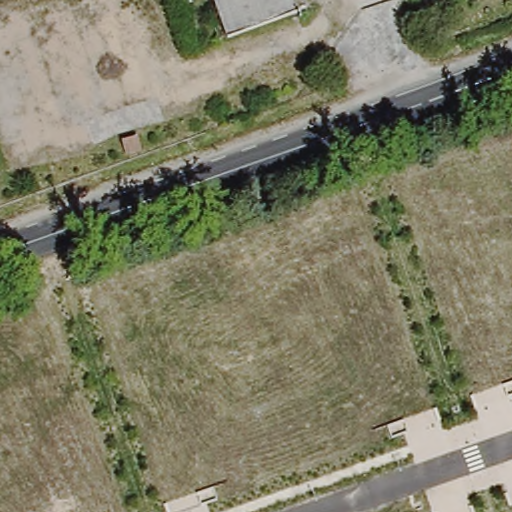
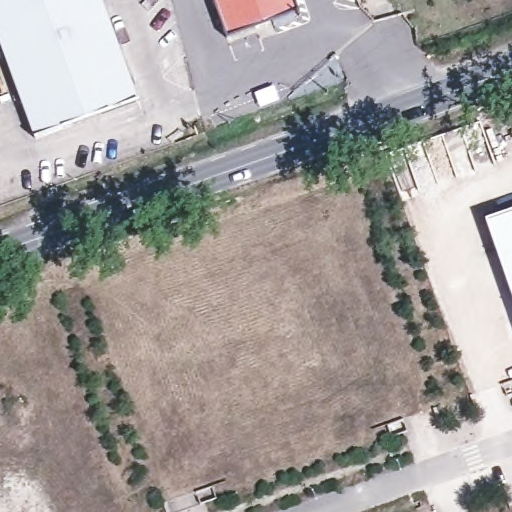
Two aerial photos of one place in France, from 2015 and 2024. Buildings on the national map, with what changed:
new [(140,102),(35,139),(0,45),(0,0),(102,0),(140,102)]
unchanged [(302,11),(230,40),(215,0),(297,0),(302,11)]
new [(485,221),(512,212),(512,300),(485,221)]

